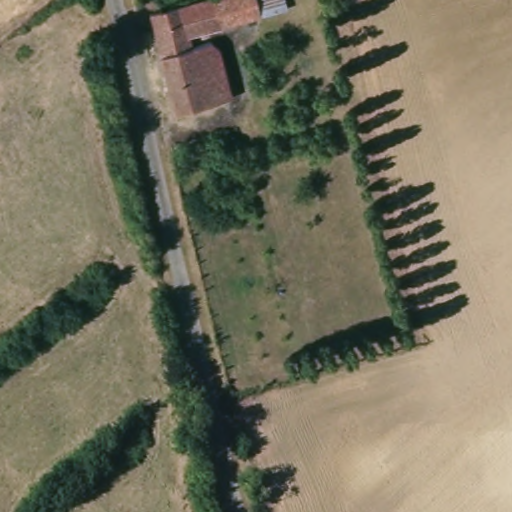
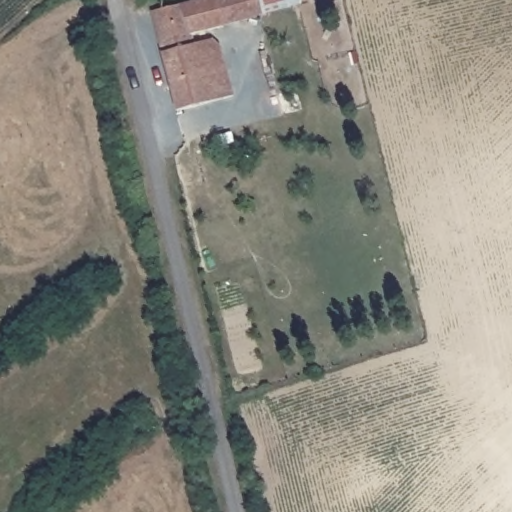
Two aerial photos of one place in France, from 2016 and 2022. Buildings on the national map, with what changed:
unchanged [(216,41),(224,47),(236,97),(182,113),(156,15),(209,0),(288,0),(290,7),(266,15),(266,16),(195,36),(198,46),(216,41)]

